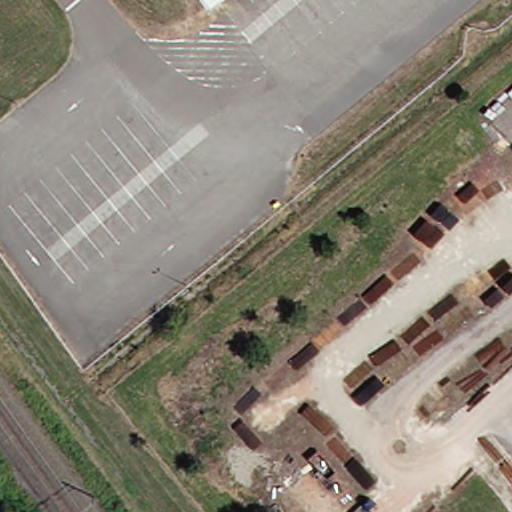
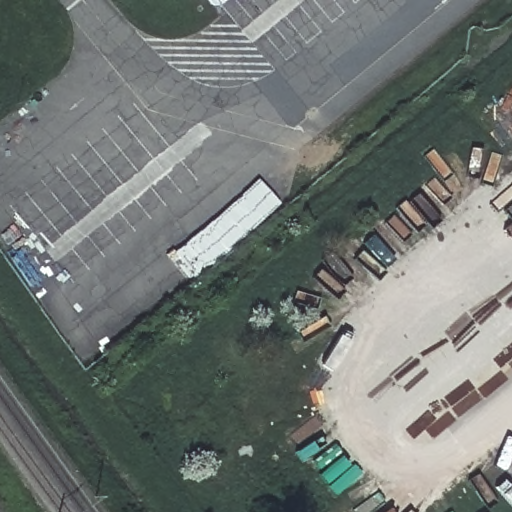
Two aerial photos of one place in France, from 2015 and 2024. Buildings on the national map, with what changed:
unchanged [(196,0),(217,0),(205,10),(196,0)]

